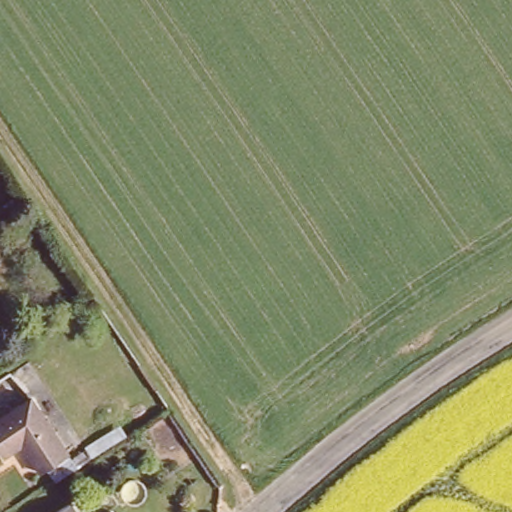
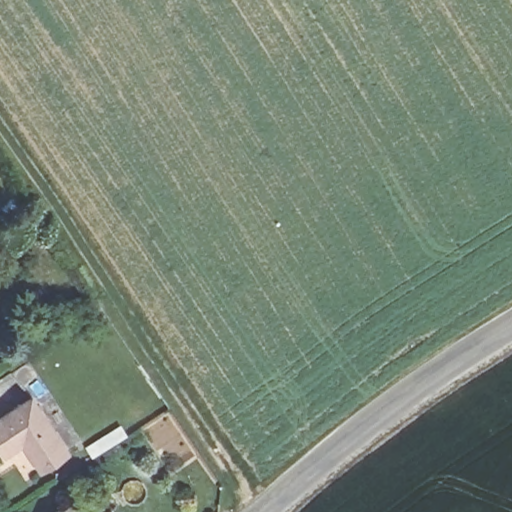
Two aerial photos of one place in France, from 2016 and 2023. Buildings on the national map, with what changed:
unchanged [(31,389),(71,445),(43,463),(21,433),(2,446),(0,444),(0,409),(31,389)]

